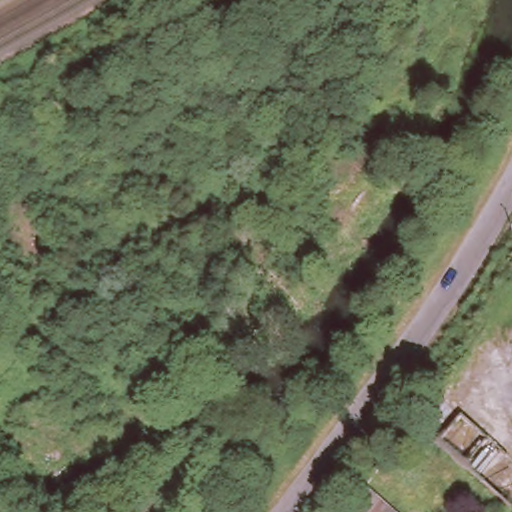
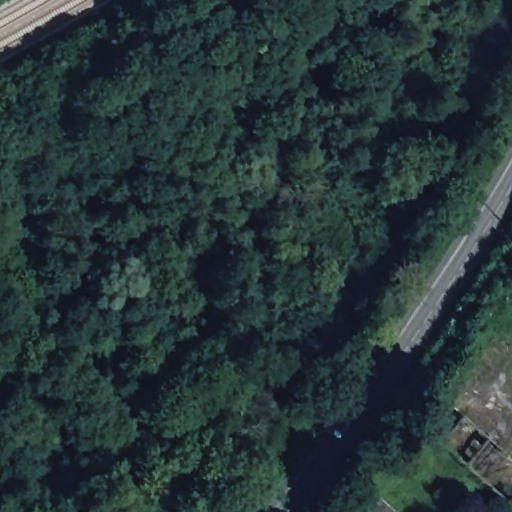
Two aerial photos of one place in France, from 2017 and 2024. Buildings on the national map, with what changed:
unchanged [(347,512),(345,510),(365,484),(397,512),(347,512)]

